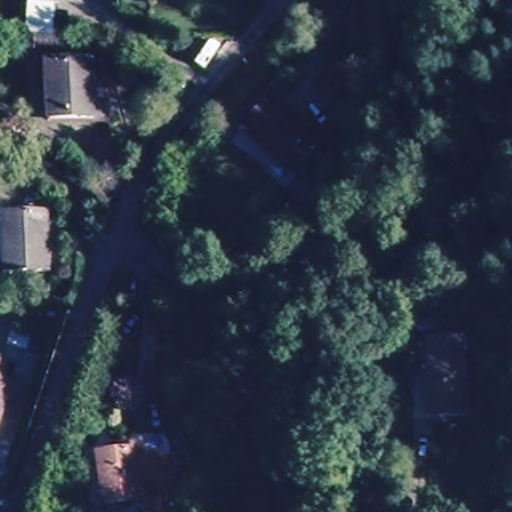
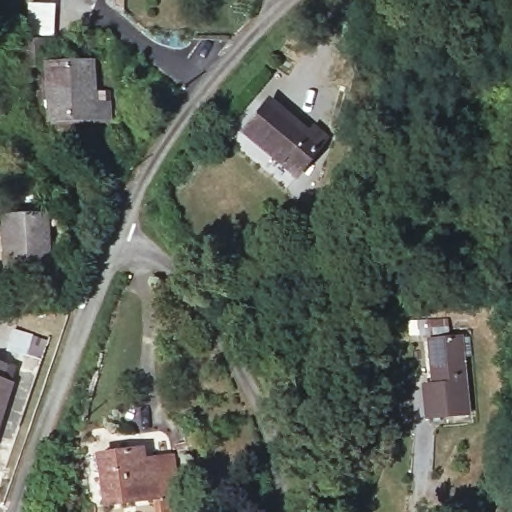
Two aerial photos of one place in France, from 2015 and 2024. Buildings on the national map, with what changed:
unchanged [(149,27),(157,29),(157,36),(147,37),(149,27)]
unchanged [(38,65),(106,62),(106,117),(39,123),(38,65)]
unchanged [(264,104),(285,122),(292,116),(308,130),(312,125),(327,139),(293,176),(241,130),(264,104)]
unchanged [(51,276),(0,282),(0,221),(47,217),(51,276)]
unchanged [(421,387),(428,386),(424,340),(457,335),(464,410),(424,416),(421,387)]
unchanged [(159,512),(157,502),(103,512),(95,470),(111,467),(140,462),(142,475),(166,471),(175,469),(183,512),(159,512)]
unchanged [(507,512),(512,503),(512,512),(507,512)]

